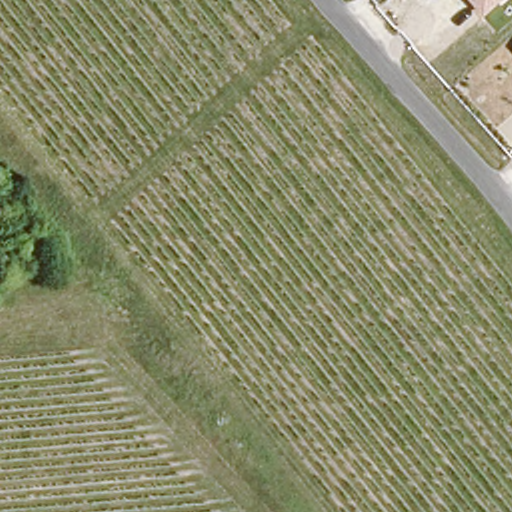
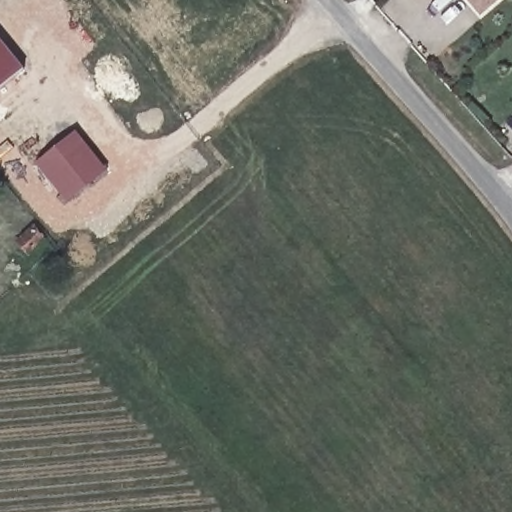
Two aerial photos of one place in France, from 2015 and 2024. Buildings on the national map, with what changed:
unchanged [(468,0),(500,0),(482,16),(468,0)]
new [(0,89),(0,37),(25,69),(0,89)]
new [(77,130),(109,171),(67,202),(36,163),(77,130)]

